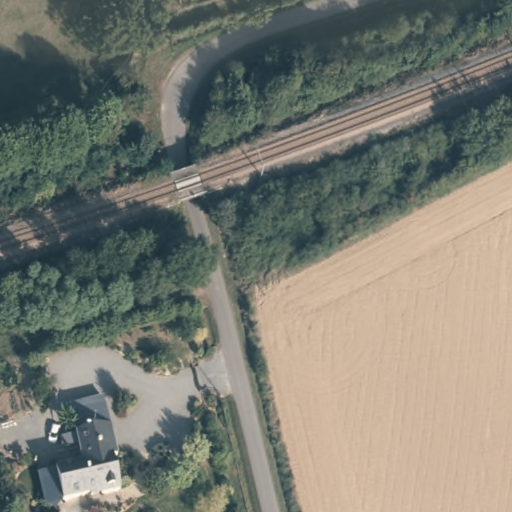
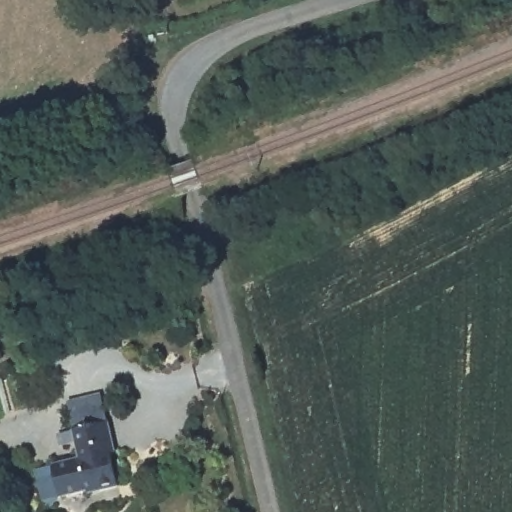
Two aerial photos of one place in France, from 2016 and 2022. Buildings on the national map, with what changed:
unchanged [(113,457),(121,490),(99,496),(97,491),(60,498),(54,465),(81,460),(79,446),(67,447),(65,435),(76,433),(71,407),(106,399),(112,425),(120,455),(113,457)]

